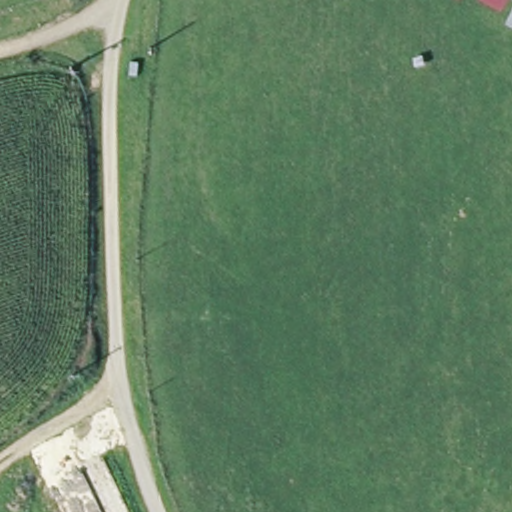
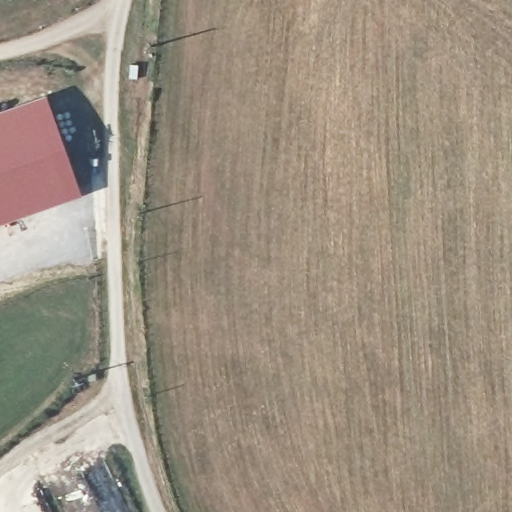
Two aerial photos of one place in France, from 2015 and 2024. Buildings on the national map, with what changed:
new [(0,223),(0,108),(44,92),(81,195),(0,223)]

